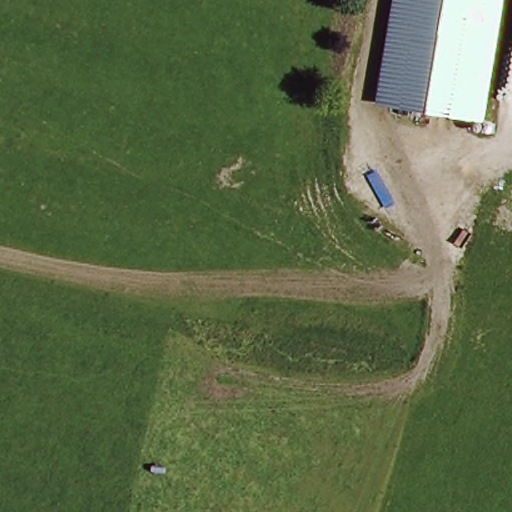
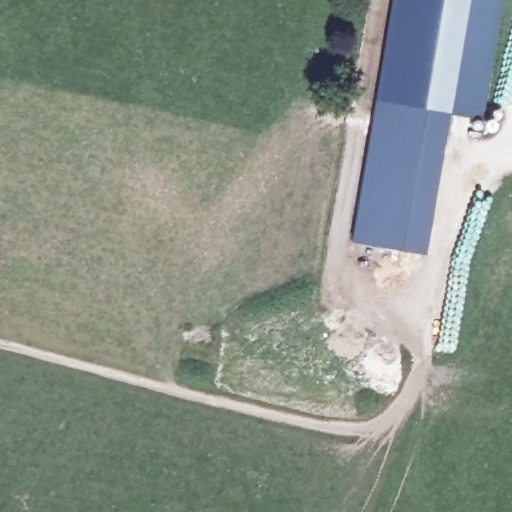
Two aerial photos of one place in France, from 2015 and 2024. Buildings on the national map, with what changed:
unchanged [(391,0),(502,0),(480,121),(372,103),(391,0)]
new [(448,116),(425,255),(350,242),(372,103),(448,116)]

